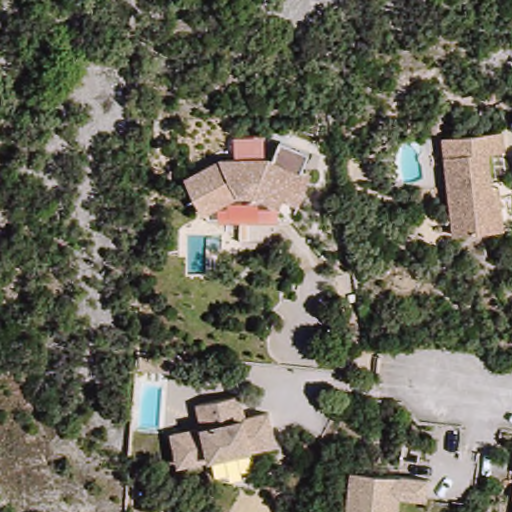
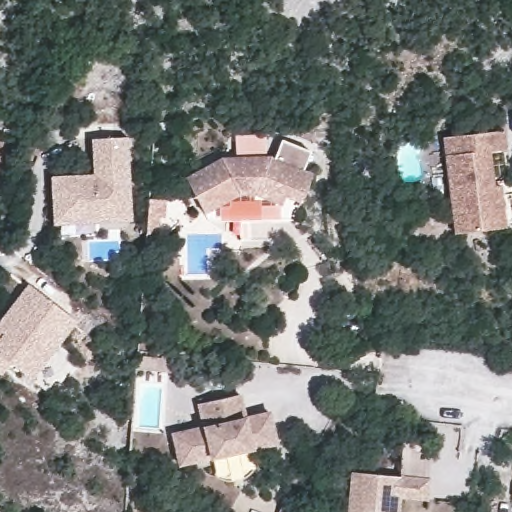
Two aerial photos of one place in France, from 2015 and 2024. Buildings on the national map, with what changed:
unchanged [(450,235),(445,139),(505,136),(505,152),(490,154),(491,184),(497,185),(500,234),(450,235)]
new [(50,177),(93,174),(91,139),(127,138),(132,222),(53,224),(50,177)]
unchanged [(247,199),(233,197),(198,219),(183,185),(216,164),(269,162),(277,145),(306,156),(299,178),(307,182),(299,203),(293,218),(247,199)]
new [(76,321),(58,346),(73,356),(46,392),(9,363),(1,375),(0,374),(0,321),(27,286),(76,321)]
new [(140,360),(161,362),(161,358),(177,360),(176,377),(139,375),(140,360)]
unchanged [(251,452),(180,463),(176,432),(206,427),(201,402),(244,397),(249,418),(270,416),(274,433),(278,447),(251,452)]
unchanged [(353,476),(430,482),(428,501),(404,498),(402,512),(349,512),(353,476)]

